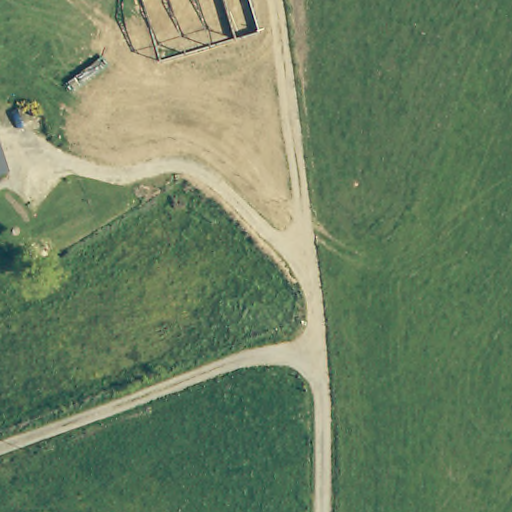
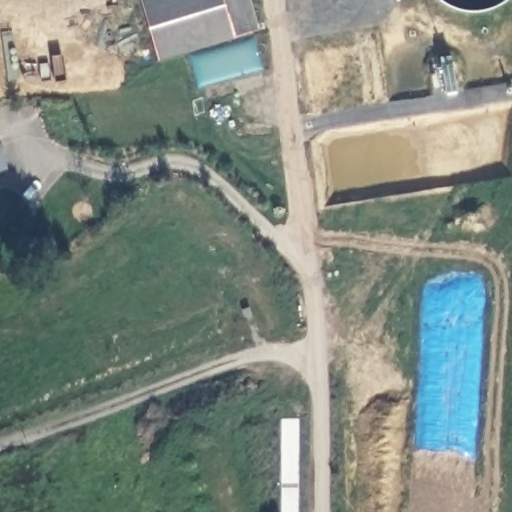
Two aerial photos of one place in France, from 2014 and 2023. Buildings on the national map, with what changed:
new [(259,31),(233,38),(158,60),(140,0),(250,0),(259,31)]
unchanged [(0,173),(0,143),(8,170),(0,173)]

